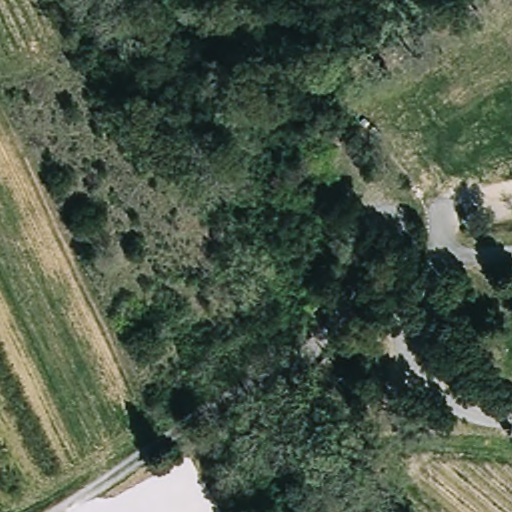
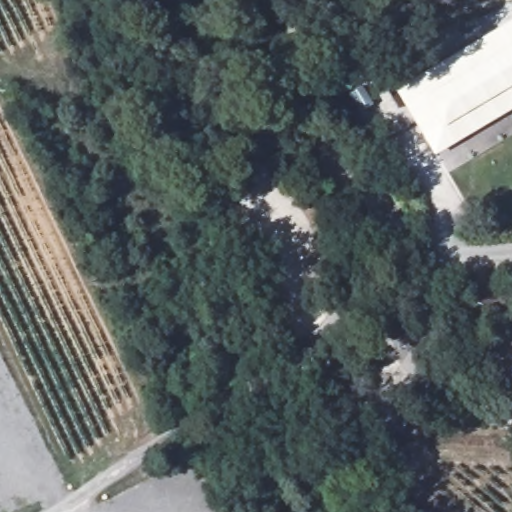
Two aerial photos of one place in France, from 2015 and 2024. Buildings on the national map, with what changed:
new [(512,21),(512,109),(434,155),(396,90),(512,21)]

